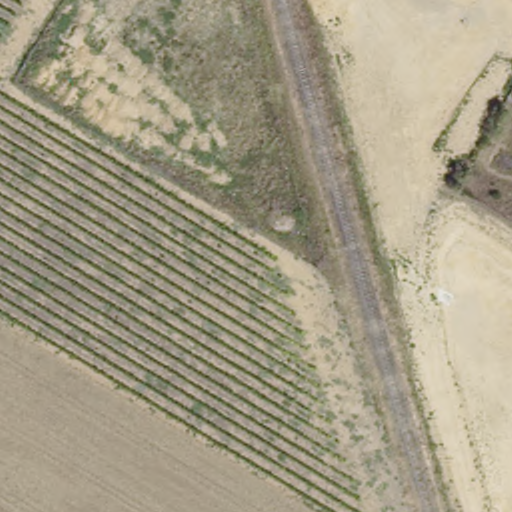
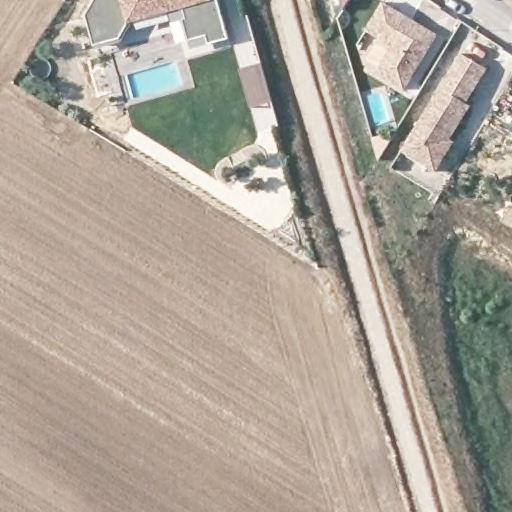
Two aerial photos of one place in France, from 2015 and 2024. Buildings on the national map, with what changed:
new [(228,37),(209,43),(207,36),(188,40),(183,20),(187,19),(185,9),(130,24),(121,40),(95,45),(87,15),(96,0),(218,0),(228,37)]
new [(344,7),(342,0),(349,0),(344,7)]
new [(385,14),(439,46),(407,101),(378,84),(394,57),(367,42),(385,14)]
new [(251,107),(240,69),(261,64),(273,101),(251,107)]
new [(462,67),(487,82),(467,116),(471,119),(450,152),(455,155),(437,185),(402,165),(462,67)]

